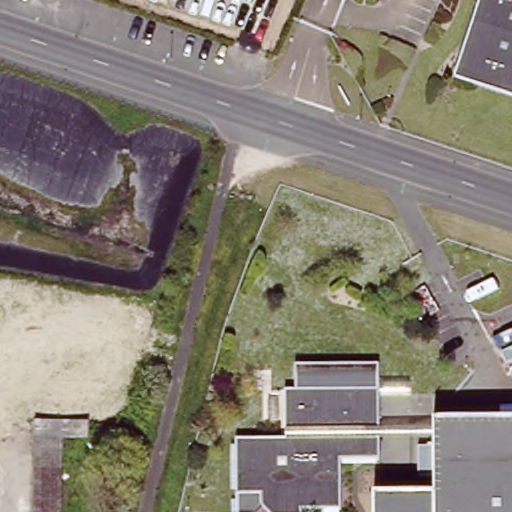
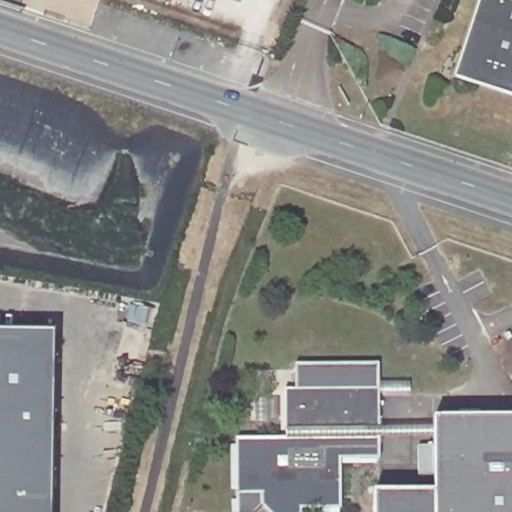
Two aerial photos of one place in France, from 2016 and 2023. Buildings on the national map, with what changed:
unchanged [(460,70),(481,0),(512,0),(512,85),(460,70)]
new [(0,331),(52,331),(50,512),(0,512),(0,331)]
demolished [(8,338),(29,340),(28,352),(40,354),(38,405),(5,404),(3,391),(0,391),(0,365),(6,364),(8,338)]
unchanged [(376,458),(337,458),(336,506),(299,507),(298,512),(267,512),(260,503),(260,491),(238,492),(236,438),(284,436),(282,390),(376,390),(376,458)]
unchanged [(434,422),(512,422),(512,512),(434,512),(434,422)]
demolished [(84,435),(85,450),(55,452),(29,453),(28,437),(84,435)]
unchanged [(434,512),(371,512),(371,492),(434,492),(434,512)]

